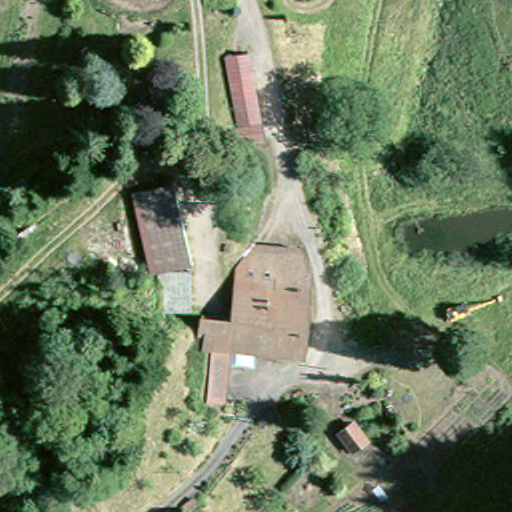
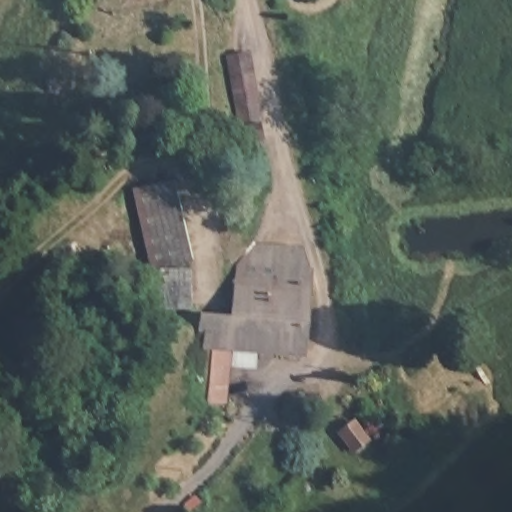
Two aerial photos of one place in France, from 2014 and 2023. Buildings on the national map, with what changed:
unchanged [(240,50),(255,118),(233,122),(220,55),(240,50)]
unchanged [(229,125),(255,121),(258,136),(232,141),(229,125)]
unchanged [(168,187),(185,272),(154,274),(137,192),(168,187)]
unchanged [(211,383),(211,381),(213,349),(193,346),(193,338),(195,317),(211,318),(227,318),(230,300),(233,266),(252,245),(299,250),(305,273),(300,356),(254,352),(253,366),(240,365),(241,351),(229,350),(227,383),(225,391),(225,403),(210,402),(211,383)]
unchanged [(157,314),(154,274),(185,272),(187,312),(157,314)]
unchanged [(365,445),(350,456),(336,437),(350,426),(365,445)]
unchanged [(187,500),(190,504),(181,511),(177,508),(187,500)]

